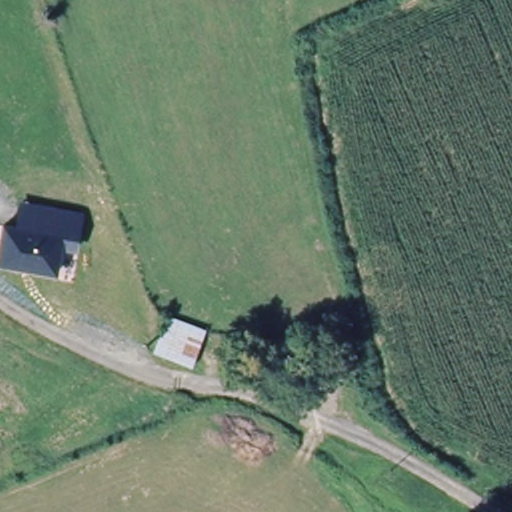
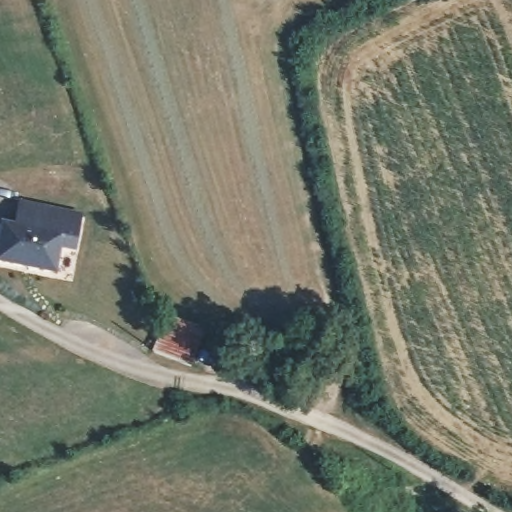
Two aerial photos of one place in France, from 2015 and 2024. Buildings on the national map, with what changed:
unchanged [(76,251),(61,247),(56,275),(0,263),(0,223),(15,226),(19,197),(84,211),(76,251)]
unchanged [(211,331),(195,367),(151,352),(167,315),(211,331)]

